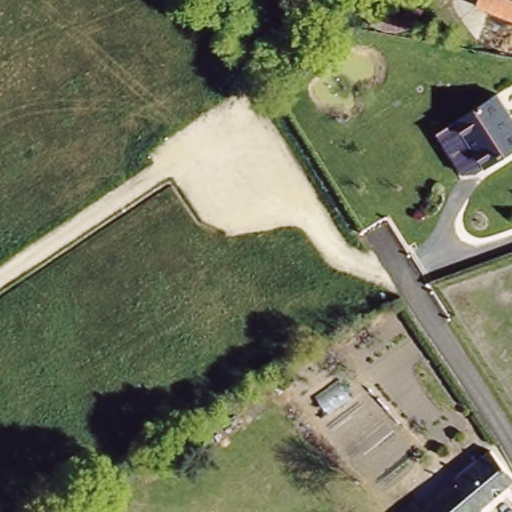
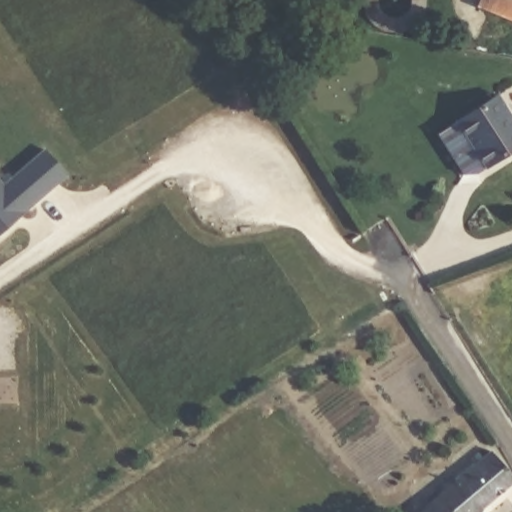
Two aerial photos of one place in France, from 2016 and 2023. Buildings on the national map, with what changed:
unchanged [(512,0),(512,21),(474,0),(512,0)]
unchanged [(512,117),(512,147),(482,164),(461,176),(435,130),(497,91),(512,117)]
new [(0,233),(0,181),(4,184),(45,148),(68,176),(0,233)]
unchanged [(512,472),(512,475),(469,512),(422,512),(494,450),(512,472)]

